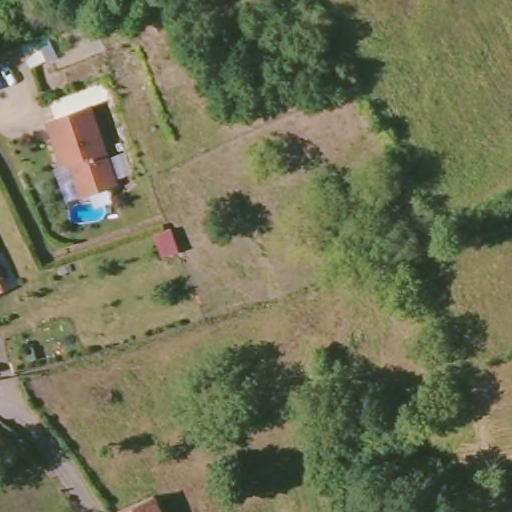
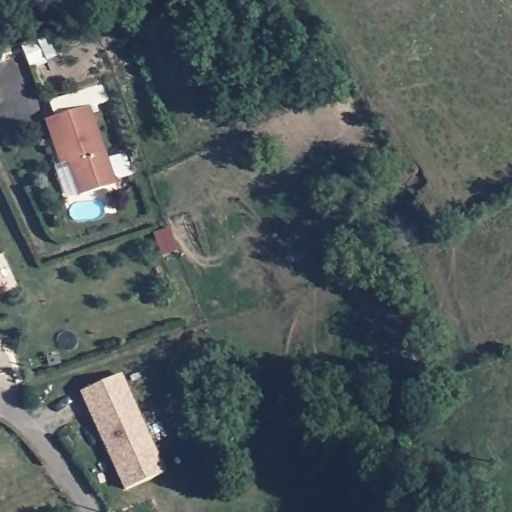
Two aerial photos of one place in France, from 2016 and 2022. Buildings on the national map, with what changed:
unchanged [(47,121),(91,106),(117,184),(81,196),(73,171),(74,167),(72,161),(61,165),(47,121)]
unchanged [(2,290),(0,290),(0,286),(2,290)]
new [(124,489),(80,393),(122,375),(164,471),(124,489)]
unchanged [(157,498),(163,512),(123,512),(157,498)]

